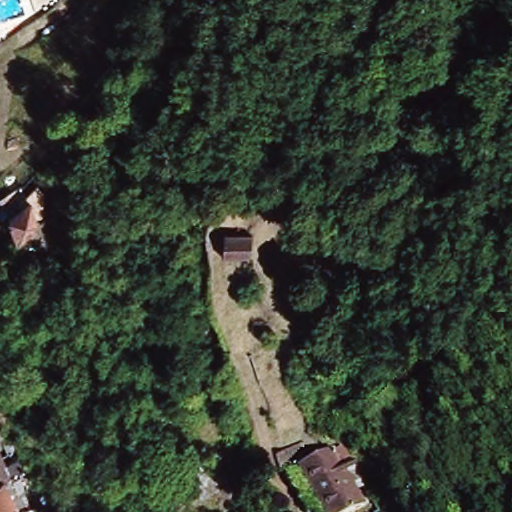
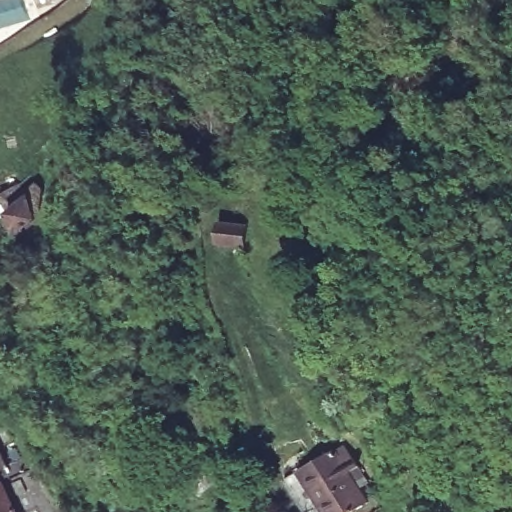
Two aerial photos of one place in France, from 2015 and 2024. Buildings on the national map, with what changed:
unchanged [(22,183),(28,192),(38,185),(40,187),(38,211),(30,213),(34,224),(12,239),(0,207),(0,195),(10,190),(22,183)]
unchanged [(241,245),(212,242),(215,219),(245,222),(241,245)]
unchanged [(337,447),(374,496),(353,512),(312,512),(290,483),(337,447)]
unchanged [(2,484),(17,512),(0,512),(0,480),(2,484)]

